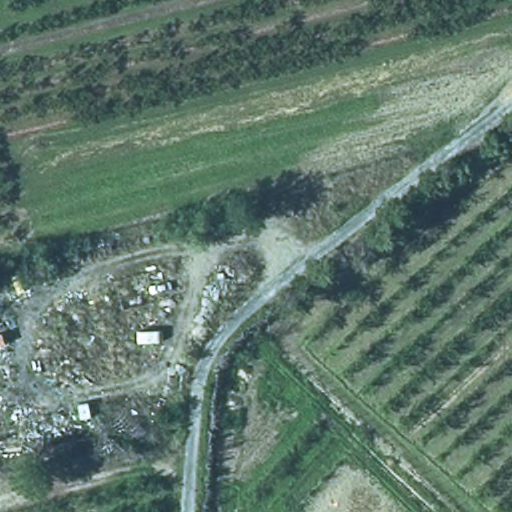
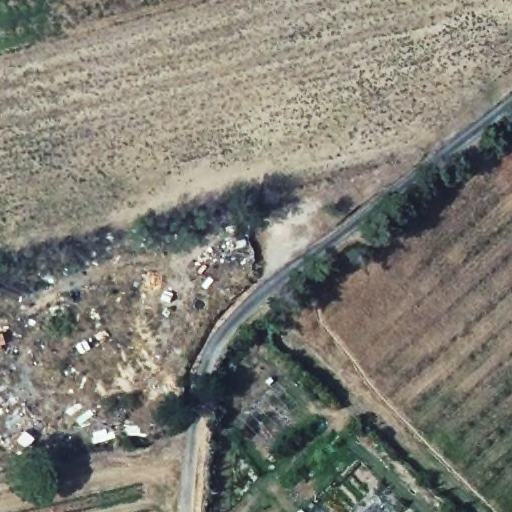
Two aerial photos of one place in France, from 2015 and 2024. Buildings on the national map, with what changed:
unchanged [(0,337),(3,351),(0,352),(0,338),(0,337)]

